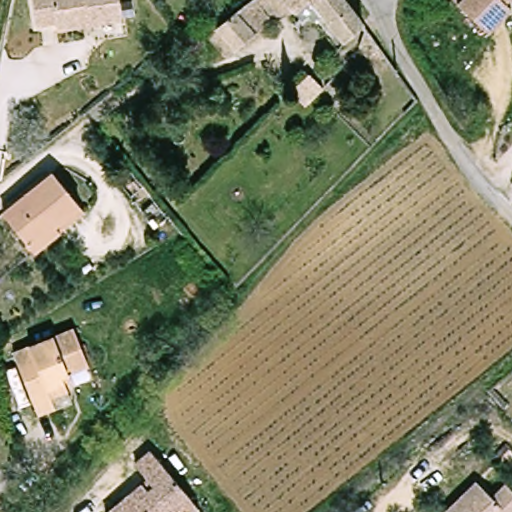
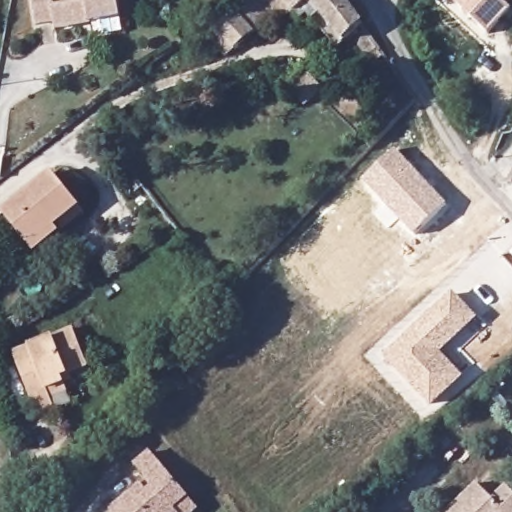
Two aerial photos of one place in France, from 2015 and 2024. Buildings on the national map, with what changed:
unchanged [(60,27),(42,31),(36,0),(121,0),(125,20),(96,27),(62,34),(60,27)]
unchanged [(268,14),(266,23),(260,32),(244,45),(245,50),(242,56),(214,28),(251,0),(256,0),(268,14)]
unchanged [(360,23),(341,39),(312,1),(296,12),(287,0),(344,0),(360,23)]
unchanged [(510,4),(512,7),(512,19),(494,39),(452,0),(512,0),(512,2),(510,4)]
new [(395,149),(447,204),(415,236),(362,179),(395,149)]
unchanged [(82,212),(35,252),(4,214),(52,172),(82,212)]
new [(478,319),(442,353),(465,378),(431,408),(384,356),(453,291),(478,319)]
unchanged [(85,363),(64,373),(66,384),(50,395),(55,409),(38,416),(13,357),(70,329),(85,363)]
unchanged [(140,469),(155,457),(193,501),(181,512),(121,512),(153,484),(140,469)]
unchanged [(512,492),(512,512),(447,512),(480,482),(500,502),(512,492)]

